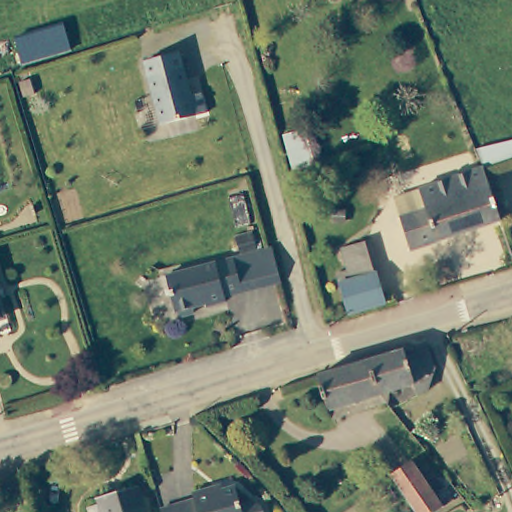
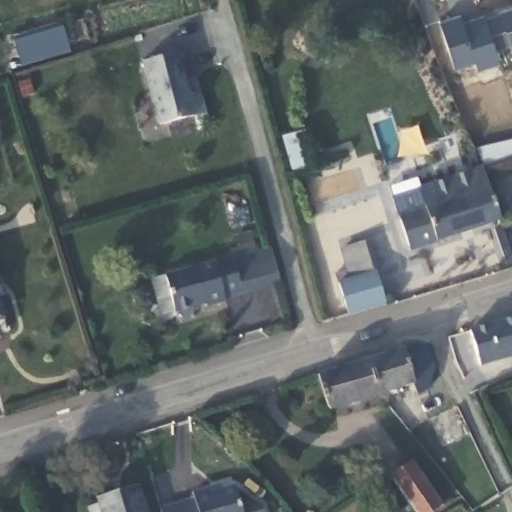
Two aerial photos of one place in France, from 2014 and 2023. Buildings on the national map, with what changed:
new [(500,11),(512,8),(512,49),(510,46),(496,50),(486,20),(501,15),(500,11)]
new [(460,16),(462,24),(485,16),(486,20),(496,50),(500,64),(478,71),(476,63),(454,69),(440,23),(460,16)]
new [(17,42),(65,31),(71,47),(20,66),(17,42)]
unchanged [(177,51),(189,92),(198,89),(204,110),(159,124),(139,62),(177,51)]
unchanged [(316,125),(325,163),(296,170),(286,133),(316,125)]
unchanged [(480,166),(476,149),(507,141),(511,159),(480,166)]
unchanged [(398,219),(392,199),(392,198),(411,191),(417,189),(418,190),(450,179),(449,174),(454,170),(468,165),(471,172),(481,169),(498,222),(473,230),(410,252),(398,219)]
unchanged [(231,246),(227,234),(247,229),(249,240),(252,249),(266,244),(275,279),(219,294),(220,298),(210,300),(206,289),(197,263),(232,254),(231,246)]
unchanged [(378,303),(342,314),(330,274),(340,270),(335,253),(361,244),(378,303)]
unchanged [(206,289),(210,300),(200,303),(200,300),(188,304),(186,309),(174,313),(169,309),(167,309),(157,273),(197,263),(206,289)]
unchanged [(422,372),(415,397),(405,403),(400,389),(367,401),(357,366),(415,349),(422,372)]
unchanged [(317,417),(306,382),(357,366),(367,401),(317,417)]
unchanged [(393,478),(413,464),(445,509),(440,512),(416,512),(393,478)]
unchanged [(135,487),(141,512),(85,512),(85,511),(96,508),(93,499),(135,487)]
unchanged [(241,504),(252,501),(262,506),(264,512),(162,512),(162,511),(196,501),(194,495),(212,489),(214,494),(236,488),(241,504)]

